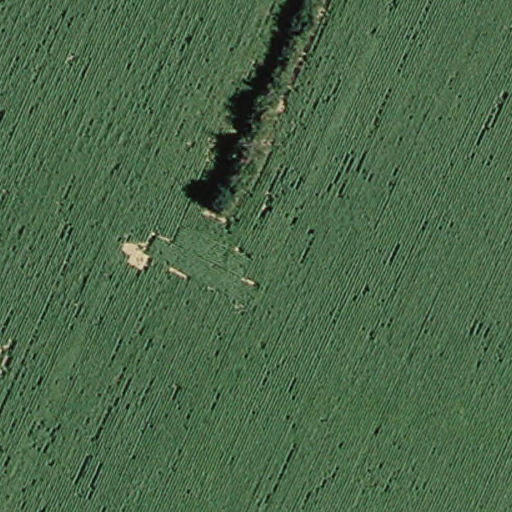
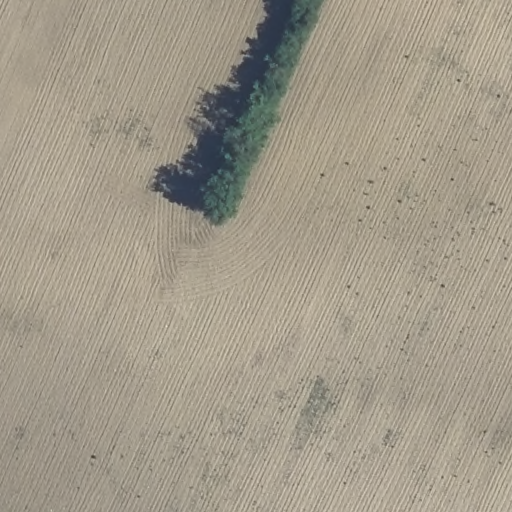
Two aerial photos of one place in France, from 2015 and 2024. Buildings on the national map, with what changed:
[]

